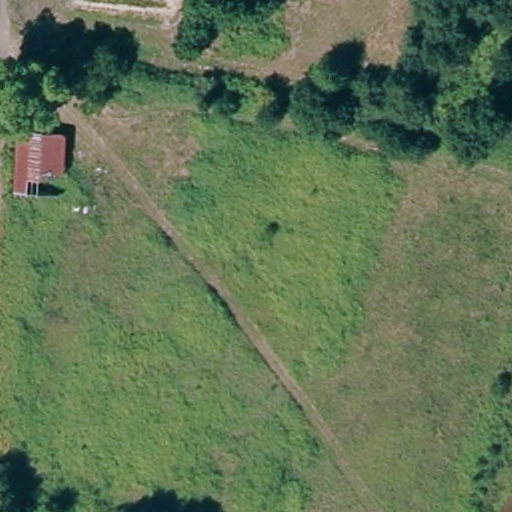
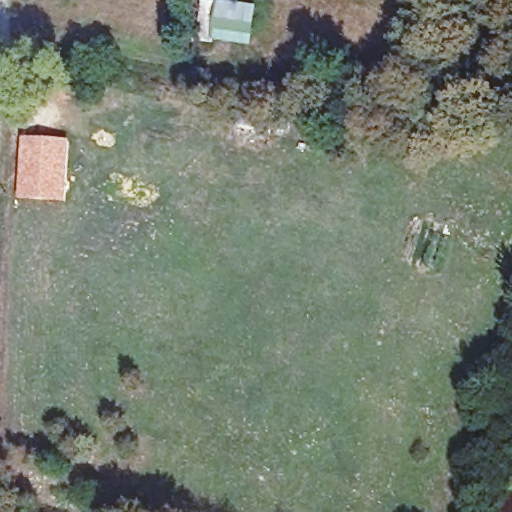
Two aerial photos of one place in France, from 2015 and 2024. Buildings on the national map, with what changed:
new [(257,11),(250,47),(197,37),(204,2),(216,4),(257,11)]
unchanged [(26,135),(66,137),(62,197),(20,194),(26,135)]

